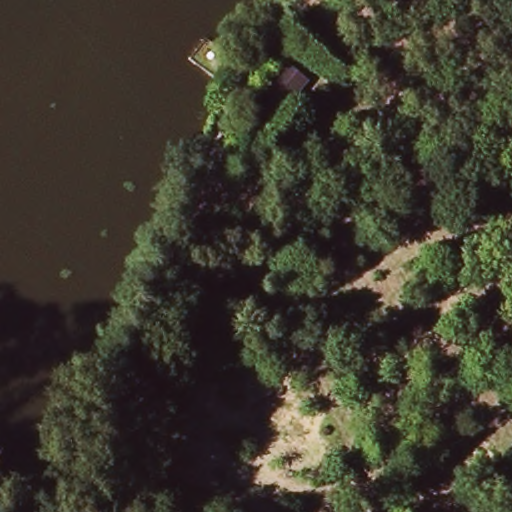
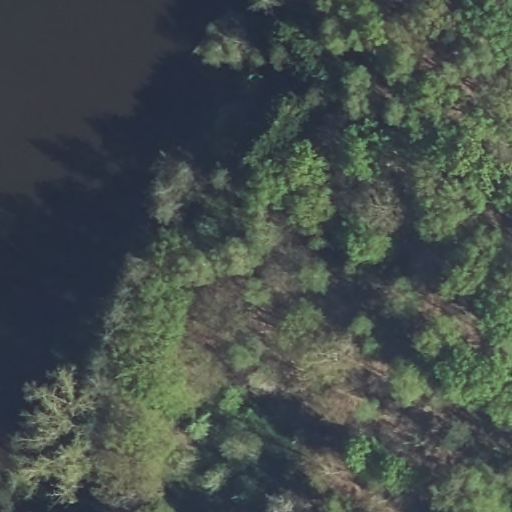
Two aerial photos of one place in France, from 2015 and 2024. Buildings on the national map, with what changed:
unchanged [(307,122),(284,106),(265,128),(244,111),(283,68),(324,101),(307,122)]

